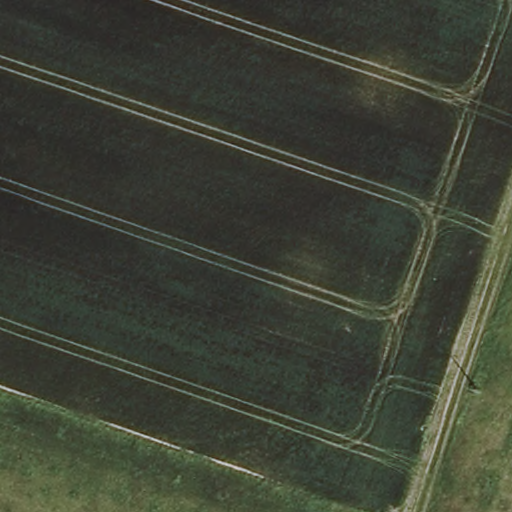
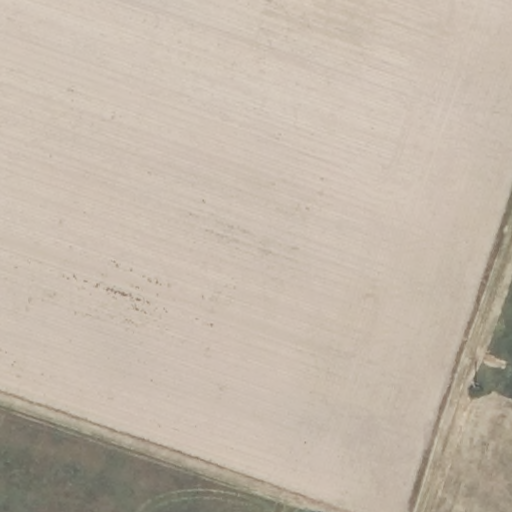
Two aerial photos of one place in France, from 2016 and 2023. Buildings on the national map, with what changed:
[]

